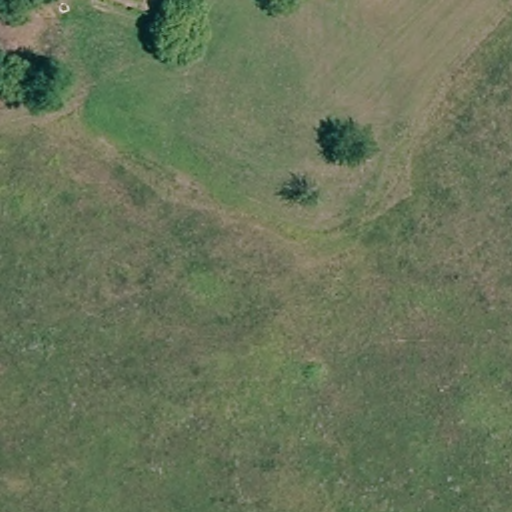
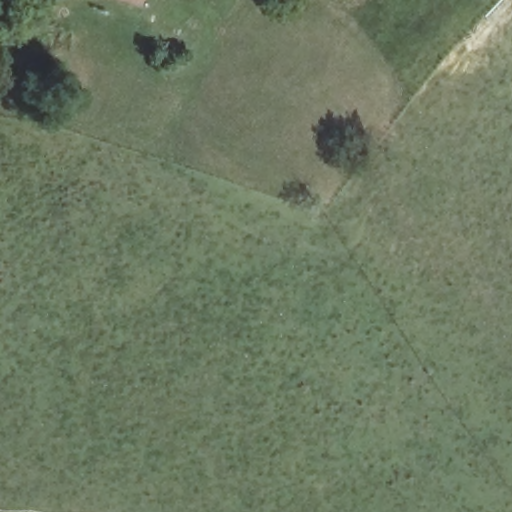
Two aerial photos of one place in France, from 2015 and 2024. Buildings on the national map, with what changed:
unchanged [(114,0),(137,0),(134,7),(114,0)]

